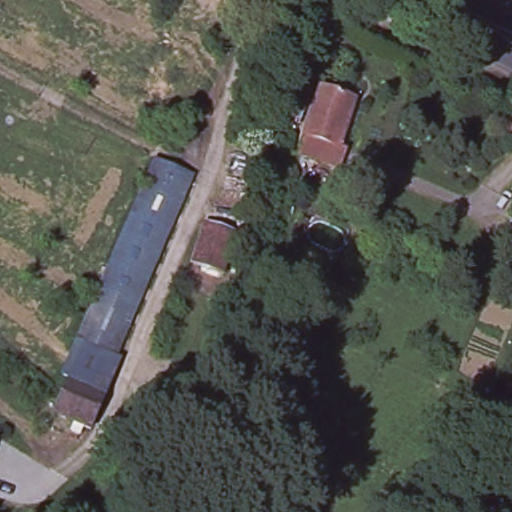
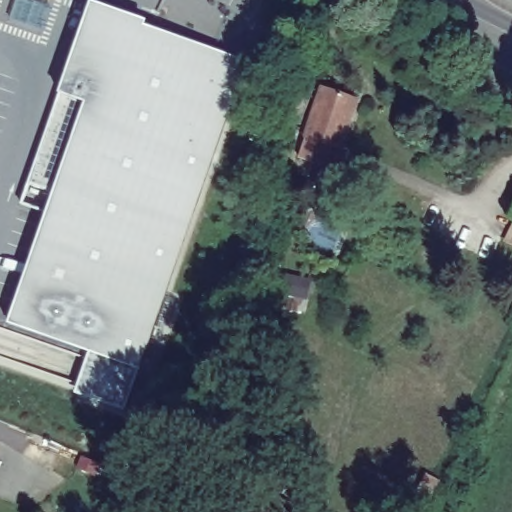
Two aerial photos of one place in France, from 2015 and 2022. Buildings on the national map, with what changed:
new [(17,0),(30,0),(50,7),(42,30),(10,19),(17,0)]
new [(142,26),(246,61),(140,370),(124,410),(74,393),(87,352),(7,325),(53,191),(27,183),(58,94),(90,1),(144,20),(142,26)]
unchanged [(343,137),(310,125),(326,80),(360,91),(343,137)]
demolished [(154,156),(193,172),(117,352),(79,336),(154,156)]
unchanged [(512,210),(512,220),(508,219),(512,210)]
demolished [(224,274),(193,263),(206,225),(237,235),(224,274)]
unchanged [(500,290),(490,284),(500,267),(510,272),(500,290)]
unchanged [(490,300),(512,309),(512,312),(507,323),(484,313),(490,300)]
demolished [(122,355),(106,390),(70,374),(65,371),(79,336),(117,352),(122,355)]
unchanged [(485,370),(462,358),(470,342),(493,353),(485,370)]
demolished [(106,390),(90,425),(55,410),(70,374),(106,390)]

